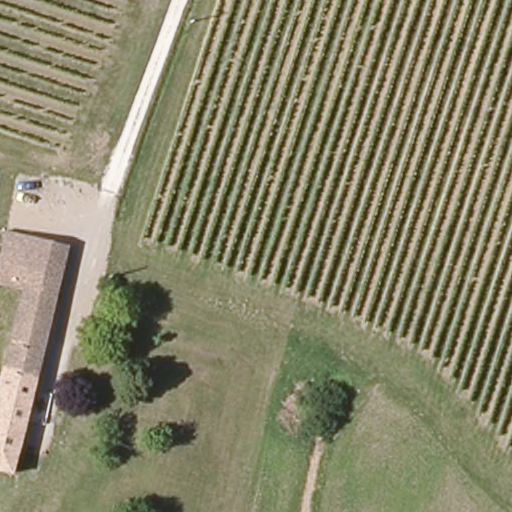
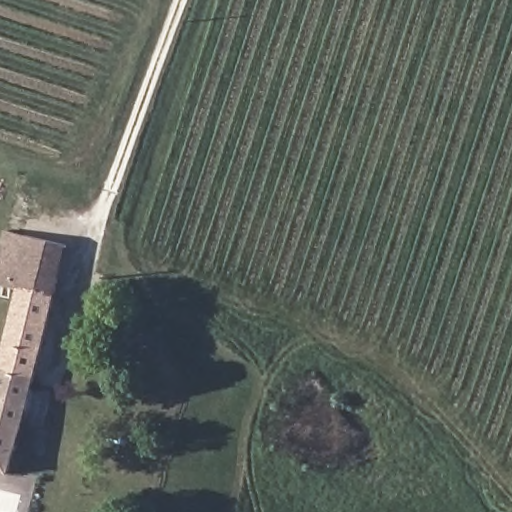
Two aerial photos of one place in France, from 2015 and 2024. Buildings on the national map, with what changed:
unchanged [(0,263),(0,259),(9,224),(24,227),(21,237),(67,249),(60,278),(0,263)]
unchanged [(22,291),(0,285),(0,263),(60,278),(12,478),(0,475),(0,381),(22,291)]

